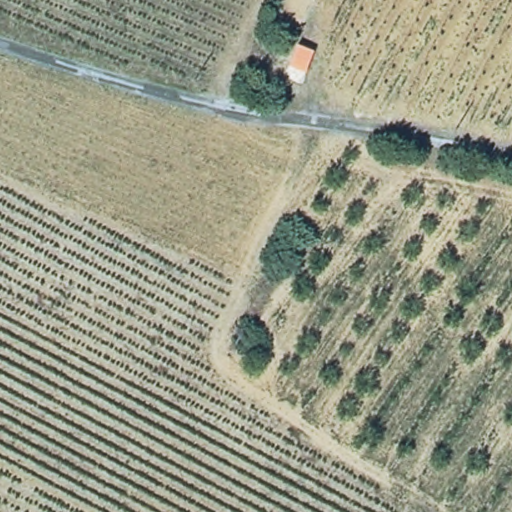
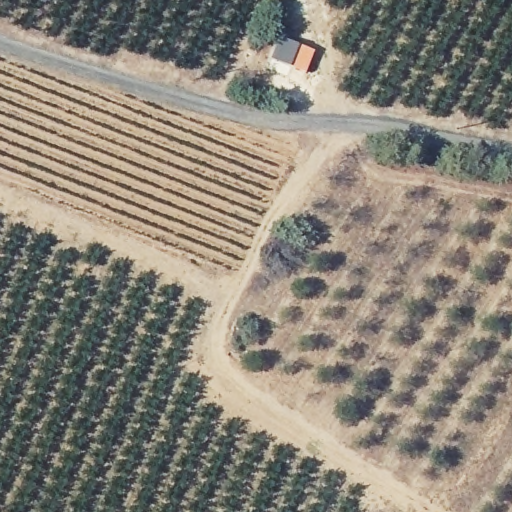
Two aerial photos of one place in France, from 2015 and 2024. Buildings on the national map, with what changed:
unchanged [(319,47),(301,82),(281,72),(298,38),(319,47)]

